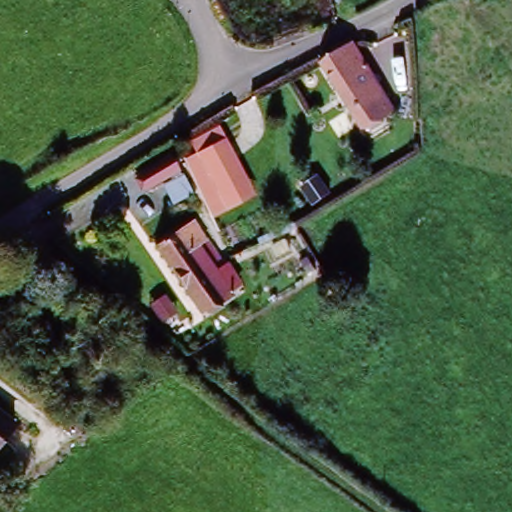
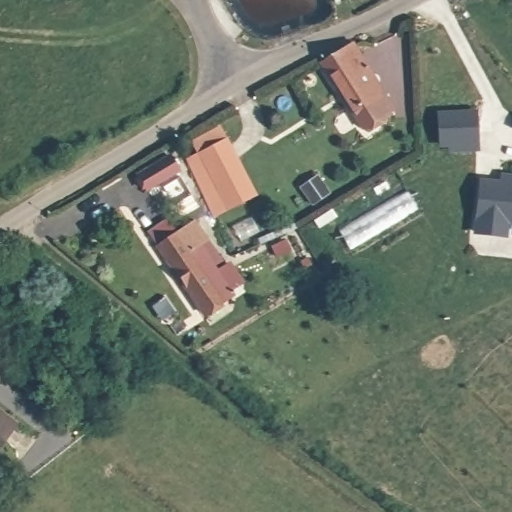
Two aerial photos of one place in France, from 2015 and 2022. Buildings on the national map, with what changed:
unchanged [(351,44),(395,106),(385,114),(340,52),(351,44)]
unchanged [(365,128),(322,64),(340,52),(385,114),(365,128)]
new [(450,151),(450,145),(440,145),(440,115),(473,115),(473,135),(473,151),(450,151)]
unchanged [(256,200),(226,215),(195,155),(225,140),(256,200)]
unchanged [(137,179),(166,156),(178,172),(150,195),(137,179)]
new [(504,236),(476,233),(480,184),(500,185),(501,178),(508,179),(512,179),(512,222),(505,221),(504,236)]
unchanged [(203,306),(157,251),(175,236),(180,234),(195,253),(204,247),(231,285),(219,294),(203,306)]
unchanged [(18,423),(0,446),(0,407),(18,423)]

